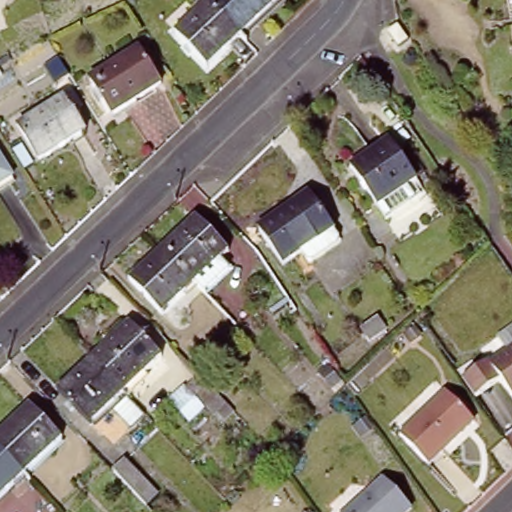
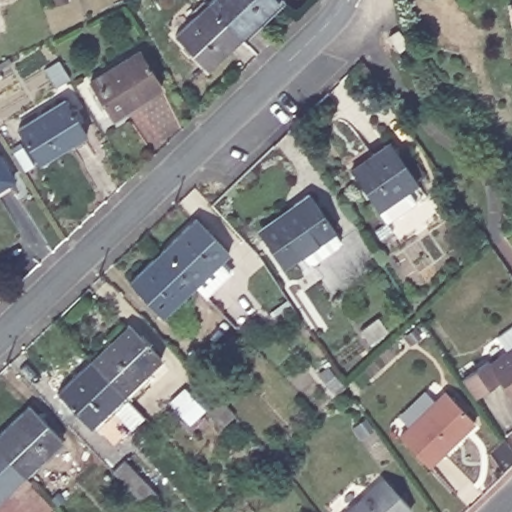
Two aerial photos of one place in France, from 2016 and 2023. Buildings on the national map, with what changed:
unchanged [(213,0),(266,0),(275,9),(240,44),(205,8),(213,0)]
unchanged [(512,0),(512,45),(506,1),(512,0)]
unchanged [(206,76),(172,40),(205,8),(240,44),(206,76)]
unchanged [(132,51),(156,87),(109,118),(85,81),(132,51)]
unchanged [(55,81),(44,63),(59,54),(70,71),(55,81)]
unchanged [(57,105),(81,140),(37,170),(12,134),(57,105)]
unchanged [(386,140),(420,192),(385,217),(349,165),(386,140)]
unchanged [(10,179),(0,186),(0,163),(10,179)]
unchanged [(292,209),(290,204),(305,193),(332,232),(331,233),(337,242),(307,264),(300,254),(281,267),(257,234),(292,209)]
unchanged [(225,195),(232,203),(225,210),(217,202),(225,195)]
unchanged [(192,219),(225,255),(219,262),(227,272),(202,296),(194,286),(160,250),(192,219)]
unchanged [(194,286),(160,318),(127,282),(160,250),(194,286)]
unchanged [(380,311),(389,323),(370,336),(362,323),(380,311)]
unchanged [(512,323),(512,342),(504,330),(512,323)]
unchanged [(126,326),(159,361),(122,395),(106,377),(90,361),(126,326)]
unchanged [(496,357),(512,346),(512,379),(507,373),(482,391),(463,365),(488,346),(496,357)]
unchanged [(106,377),(122,395),(89,427),(56,393),(90,361),(106,377)]
unchanged [(229,402),(215,414),(192,390),(205,378),(229,402)]
unchanged [(449,386),(478,416),(430,461),(401,432),(449,386)]
unchanged [(27,408),(60,443),(26,475),(0,448),(0,434),(27,408)]
unchanged [(26,475),(0,500),(0,448),(26,475)]
unchanged [(125,457),(143,476),(134,488),(114,467),(125,457)]
unchanged [(385,478),(412,509),(409,512),(349,512),(385,478)]

